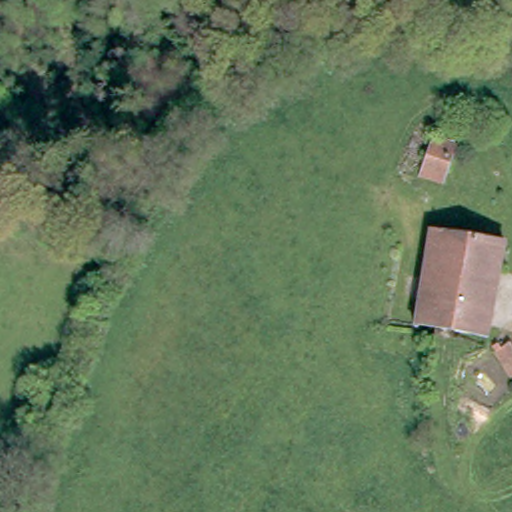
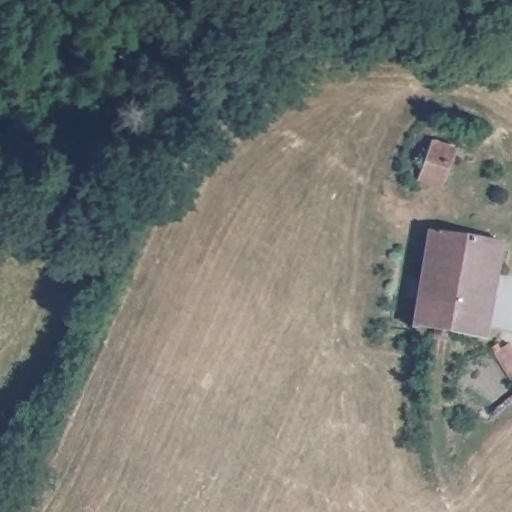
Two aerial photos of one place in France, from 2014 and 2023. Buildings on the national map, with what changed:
unchanged [(419,173),(426,136),(443,139),(467,144),(460,181),(419,173)]
unchanged [(472,333),(415,320),(431,236),(469,244),(471,234),(505,243),(488,337),(472,333)]

